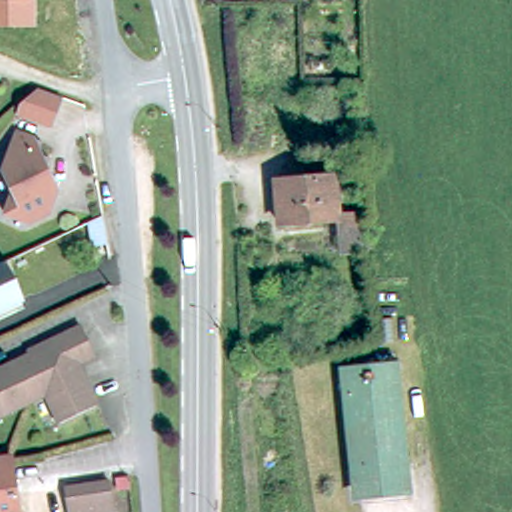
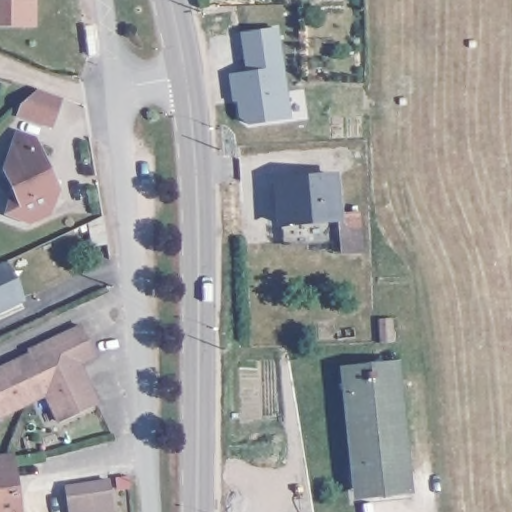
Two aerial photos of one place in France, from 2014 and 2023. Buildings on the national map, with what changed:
unchanged [(35,1),(35,27),(0,27),(0,0),(35,0),(35,1)]
new [(252,77),(247,38),(283,34),(294,124),(253,129),(245,122),(242,105),(239,106),(235,80),(240,79),(252,77)]
unchanged [(70,101),(58,132),(19,117),(42,95),(45,91),(70,101)]
unchanged [(43,140),(40,146),(45,160),(51,159),(54,166),(50,167),(54,180),(50,187),(57,189),(50,214),(33,224),(8,212),(13,192),(11,193),(6,171),(18,130),(43,140)]
unchanged [(342,230),(287,233),(285,186),(338,182),(341,223),(365,221),(366,230),(369,260),(343,261),(342,230)]
unchanged [(25,305),(0,318),(0,274),(8,270),(25,305)]
unchanged [(30,350),(86,327),(100,358),(82,367),(101,405),(61,421),(48,392),(0,412),(0,370),(33,356),(30,350)]
unchanged [(407,470),(351,475),(342,376),(394,370),(407,470)]
unchanged [(26,512),(0,512),(0,461),(17,458),(26,512)]
unchanged [(407,470),(409,490),(352,497),(351,475),(407,470)]
unchanged [(126,490),(123,476),(135,474),(137,488),(126,490)]
unchanged [(75,512),(72,485),(113,480),(117,512),(75,512)]

